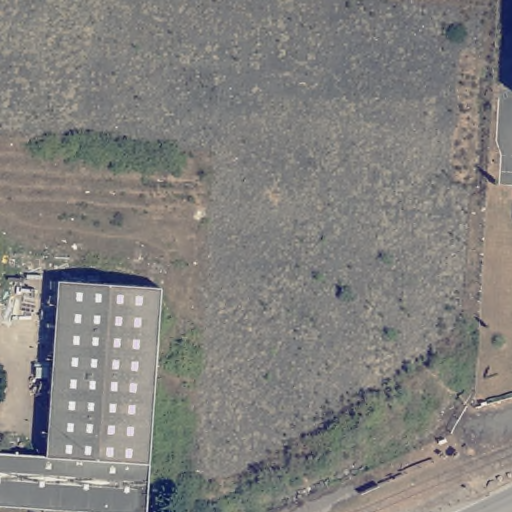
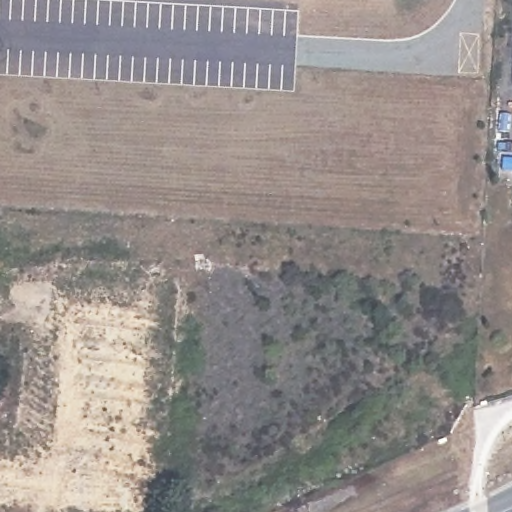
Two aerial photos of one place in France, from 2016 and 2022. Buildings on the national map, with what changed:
demolished [(150,512),(48,512),(0,510),(0,449),(55,451),(64,305),(162,311),(150,512)]

